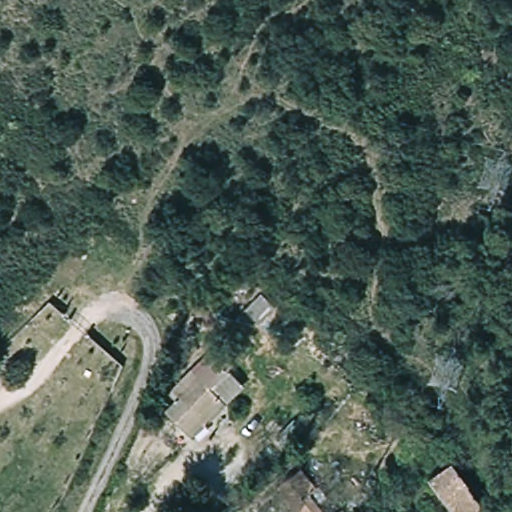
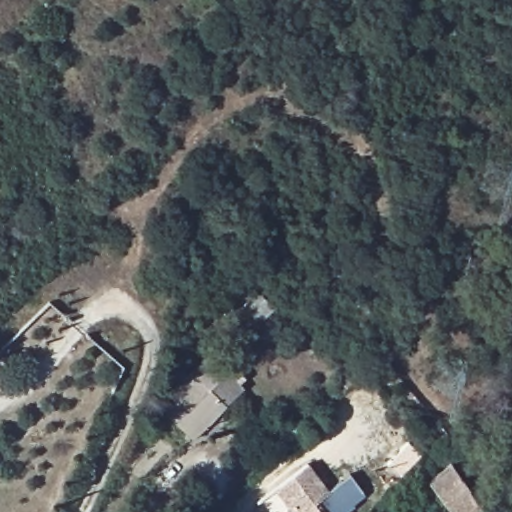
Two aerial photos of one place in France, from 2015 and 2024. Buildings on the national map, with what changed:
unchanged [(204,352),(241,387),(190,439),(161,413),(172,402),(163,395),(204,352)]
new [(350,474),(364,495),(352,502),(355,505),(345,512),(259,512),(257,509),(260,507),(257,501),(274,488),(308,463),(328,490),(350,474)]
demolished [(322,482),(313,490),(331,512),(288,512),(290,510),(293,507),(296,505),(280,487),(306,463),(322,482)]
unchanged [(485,507),(478,512),(453,512),(430,481),(456,463),(485,507)]

